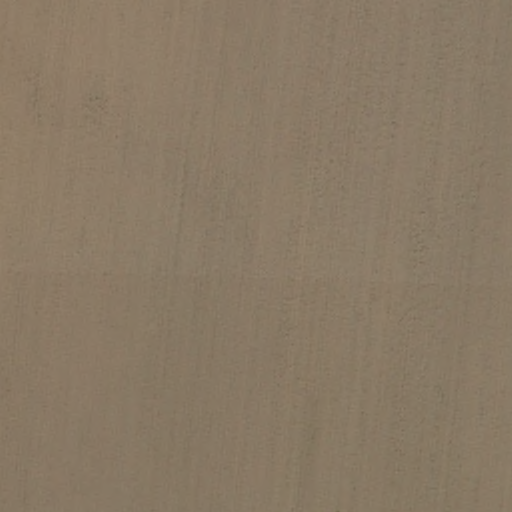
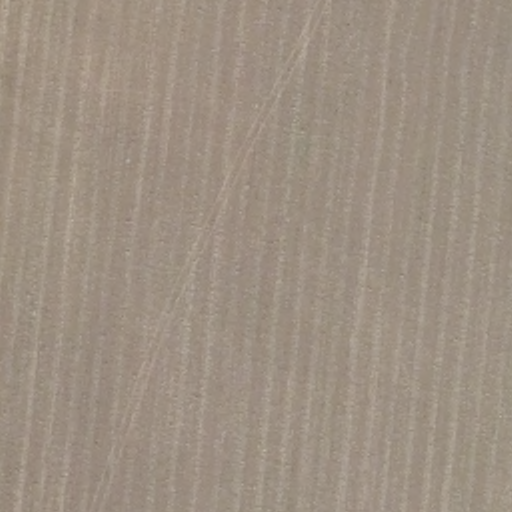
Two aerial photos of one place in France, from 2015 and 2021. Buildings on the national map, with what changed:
[]

